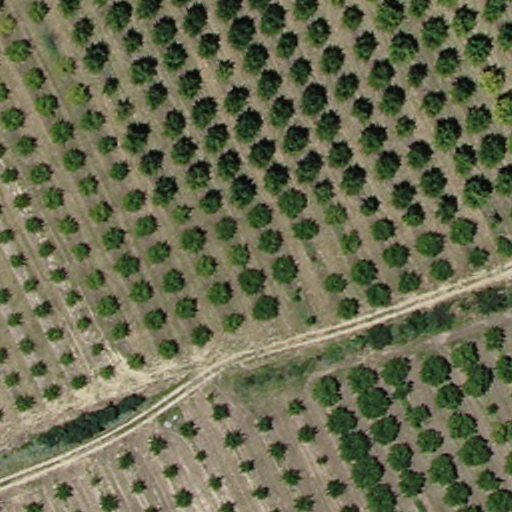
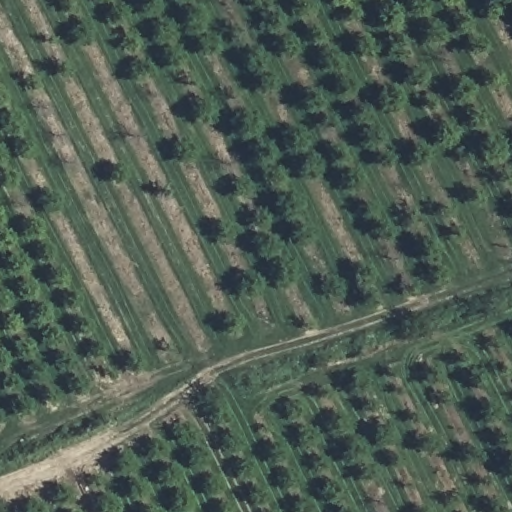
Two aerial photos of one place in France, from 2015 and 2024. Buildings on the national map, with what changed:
[]

